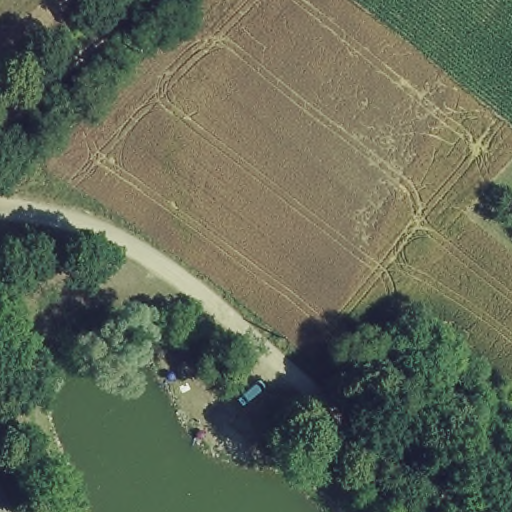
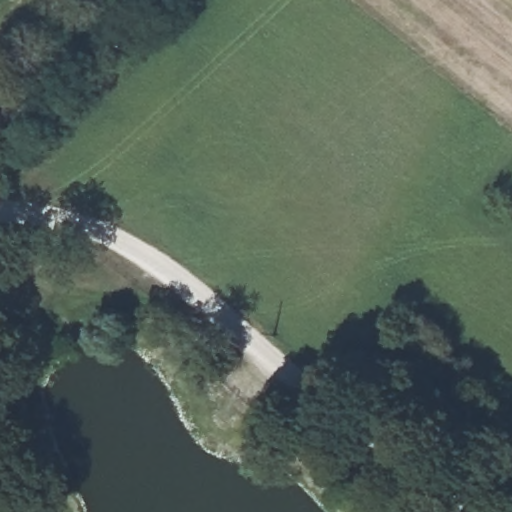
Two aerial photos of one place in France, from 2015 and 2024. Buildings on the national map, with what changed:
[]

